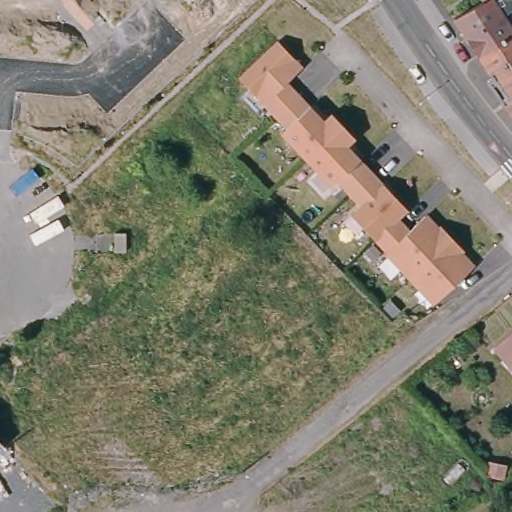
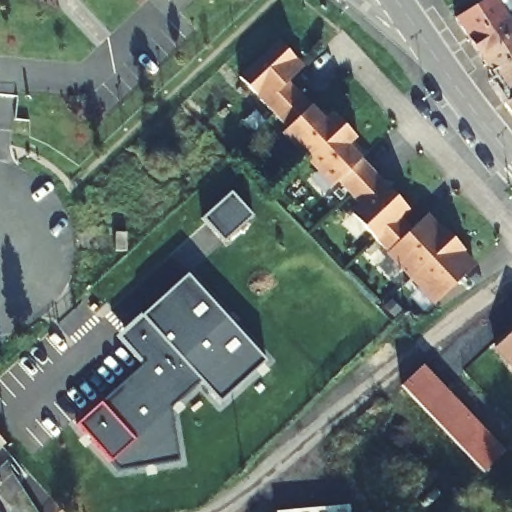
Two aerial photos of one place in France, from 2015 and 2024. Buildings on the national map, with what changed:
unchanged [(465,40),(455,24),(485,10),(480,0),(507,0),(512,8),(512,38),(477,57),(465,40)]
unchanged [(512,38),(512,63),(492,75),(489,77),(477,57),(512,38)]
unchanged [(280,40),(282,39),(306,65),(305,66),(290,80),(302,92),(327,120),(335,112),(347,125),(357,137),(350,145),(367,164),(375,171),(410,210),(400,218),(412,230),(427,216),(440,229),(443,226),(455,239),(466,251),(462,254),(474,266),(475,267),(453,288),(447,294),(437,303),(435,302),(412,277),(377,240),(353,214),(355,211),(362,205),(350,194),(343,185),(339,180),(335,185),(310,158),(285,130),(289,127),(277,115),(276,113),(242,76),(280,40)]
unchanged [(512,63),(512,105),(505,110),(489,84),(491,80),(489,77),(492,75),(512,63)]
unchanged [(512,105),(512,119),(505,110),(512,105)]
new [(253,217),(225,241),(203,218),(232,193),(253,217)]
unchanged [(127,233),(127,249),(127,251),(125,251),(117,251),(117,233),(127,233)]
new [(265,360),(220,401),(201,381),(172,408),(177,460),(120,468),(79,422),(144,362),(120,338),(188,275),(265,360)]
unchanged [(512,324),(512,367),(490,344),(512,324)]
new [(507,453),(485,472),(400,385),(424,365),(507,453)]

